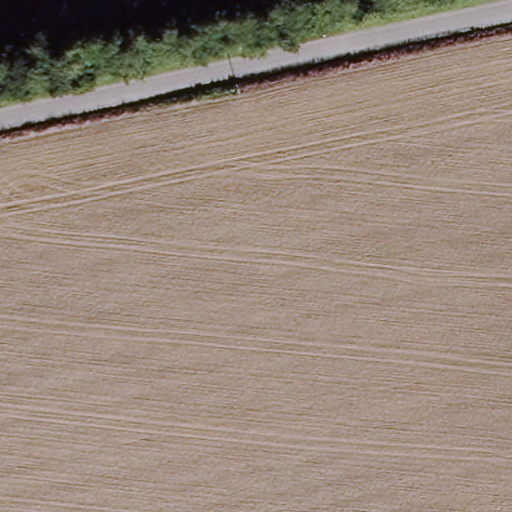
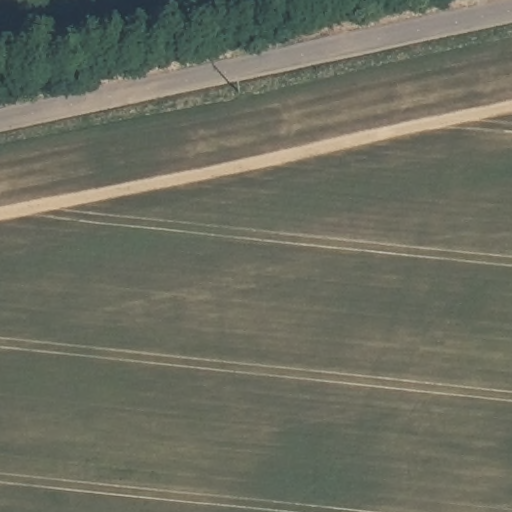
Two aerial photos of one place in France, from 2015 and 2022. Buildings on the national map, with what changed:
[]

